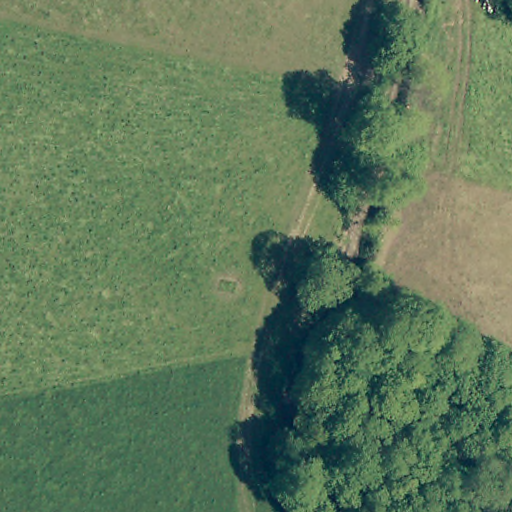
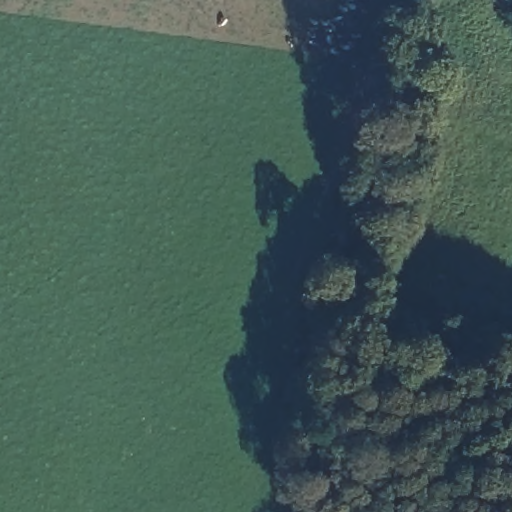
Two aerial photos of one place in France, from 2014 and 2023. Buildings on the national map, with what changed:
[]

